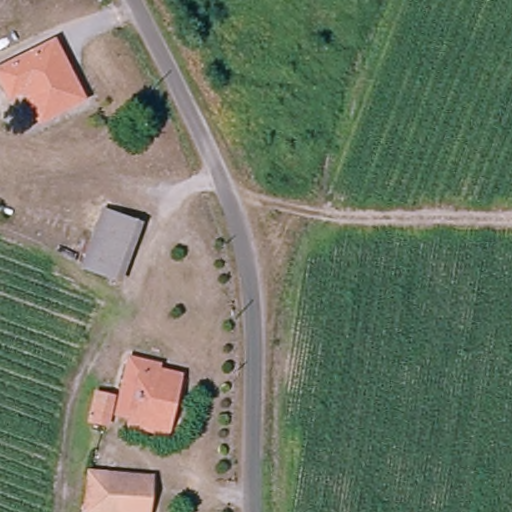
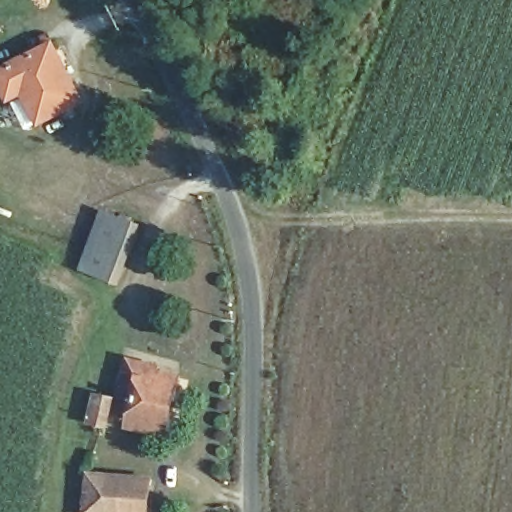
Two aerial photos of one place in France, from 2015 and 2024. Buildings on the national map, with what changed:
unchanged [(79,105),(39,124),(22,88),(6,95),(0,82),(0,76),(53,49),(79,105)]
unchanged [(119,291),(80,272),(106,212),(144,229),(119,291)]
unchanged [(145,371),(146,363),(183,373),(170,427),(133,420),(135,412),(120,407),(129,368),(145,371)]
unchanged [(108,418),(94,415),(101,391),(115,395),(108,418)]
unchanged [(87,477),(149,482),(146,512),(85,512),(87,477)]

